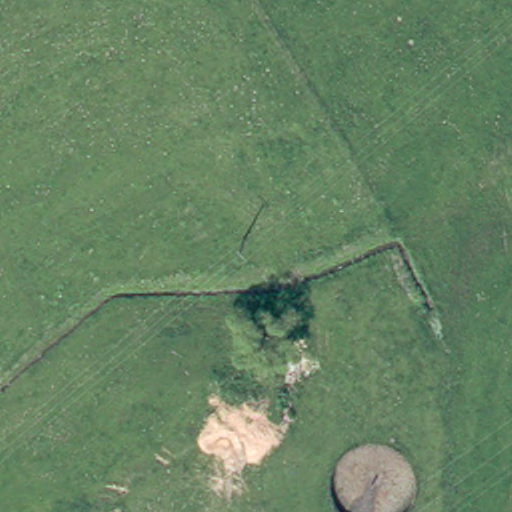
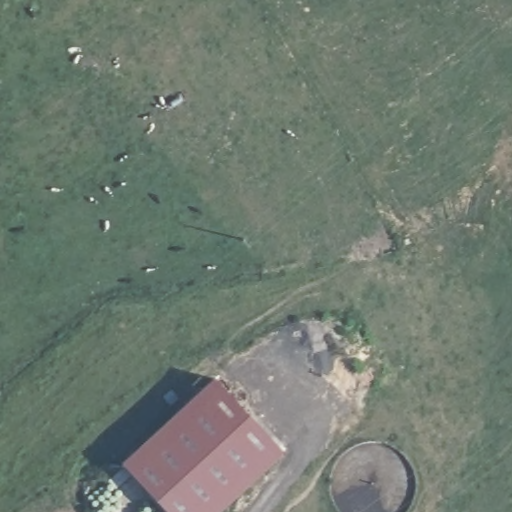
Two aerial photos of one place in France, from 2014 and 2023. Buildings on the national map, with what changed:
new [(218,512),(166,512),(121,463),(214,377),(283,452),(218,512)]

